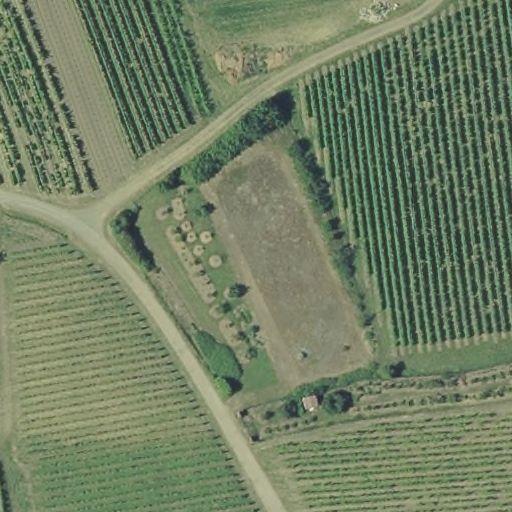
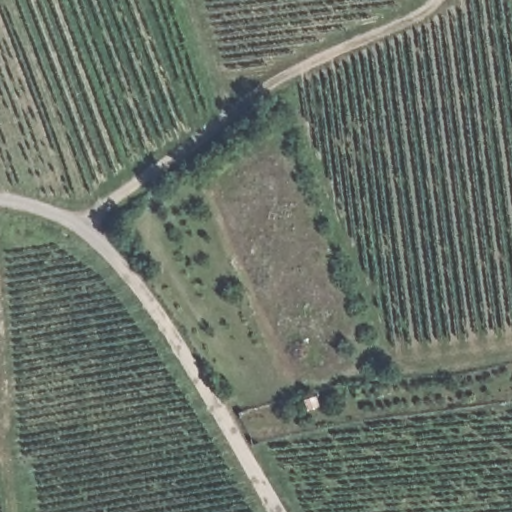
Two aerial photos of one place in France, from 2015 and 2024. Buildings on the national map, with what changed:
unchanged [(315,395),(317,411),(298,412),(298,395),(315,395)]

